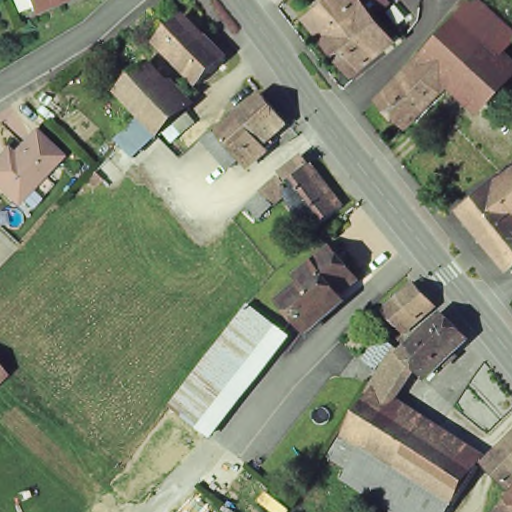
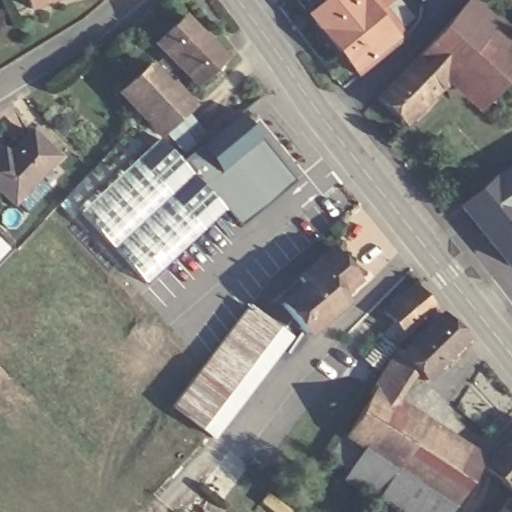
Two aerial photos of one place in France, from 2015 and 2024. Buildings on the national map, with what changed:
unchanged [(30,9),(26,0),(50,0),(30,9)]
unchanged [(306,16),(326,0),(355,0),(367,15),(377,6),(397,30),(386,39),(349,69),(306,16)]
unchanged [(416,110),(405,120),(378,95),(413,58),(427,41),(427,40),(458,9),(500,45),(469,79),(453,65),(441,83),(429,96),(433,100),(420,114),(416,110)]
unchanged [(155,44),(183,16),(225,59),(197,85),(155,44)]
unchanged [(488,96),(469,79),(500,45),(512,57),(512,70),(488,96)]
unchanged [(148,64),(190,110),(161,135),(118,90),(148,64)]
demolished [(219,130),(261,95),(285,124),(271,135),(276,141),(265,151),(260,145),(243,160),(233,169),(208,140),(211,136),(219,130)]
new [(297,182),(243,228),(184,165),(240,116),(297,182)]
new [(67,197),(141,120),(184,165),(228,212),(149,290),(67,197)]
demolished [(121,144),(121,139),(140,120),(156,136),(105,186),(99,180),(91,187),(85,180),(121,144)]
unchanged [(0,195),(0,150),(2,152),(26,128),(52,153),(35,170),(45,180),(16,211),(5,200),(0,195)]
demolished [(285,184),(288,182),(284,176),(280,175),(281,170),(285,170),(303,156),(310,165),(342,206),(312,230),(295,207),(290,210),(285,204),(290,201),(283,193),(260,215),(249,204),(278,177),(285,184)]
unchanged [(505,180),(512,175),(512,268),(510,270),(463,213),(495,187),(505,180)]
unchanged [(331,314),(306,335),(280,303),(304,284),(298,277),(315,264),(333,249),(358,280),(340,295),(345,301),(331,314)]
unchanged [(435,305),(405,335),(384,312),(415,284),(435,305)]
unchanged [(467,338),(425,380),(412,366),(401,355),(403,353),(423,332),(445,311),(467,338)]
unchanged [(291,337),(260,378),(232,357),(232,356),(236,350),(247,336),(248,335),(250,333),(250,332),(262,316),(291,337)]
unchanged [(382,337),(395,347),(376,370),(364,360),(382,337)]
unchanged [(403,353),(401,355),(412,366),(386,405),(370,395),(367,394),(398,350),(403,353)]
unchanged [(187,416),(196,405),(223,368),(232,357),(260,378),(215,437),(187,416)]
unchanged [(480,466),(454,505),(397,467),(370,450),(361,445),(346,467),(328,456),(342,432),(346,434),(370,395),(386,405),(480,466)]
unchanged [(506,447),(512,441),(512,453),(506,447)]
unchanged [(377,497),(351,480),(370,450),(397,467),(377,497)]
unchanged [(510,491),(495,478),(512,461),(512,489),(510,491)]
unchanged [(454,505),(450,512),(399,512),(394,509),(377,497),(397,467),(454,505)]
unchanged [(512,496),(512,503),(508,500),(512,496)]
unchanged [(512,503),(512,512),(499,512),(508,500),(512,503)]

